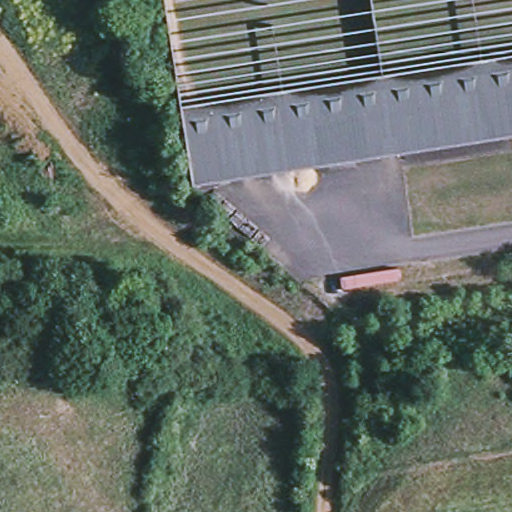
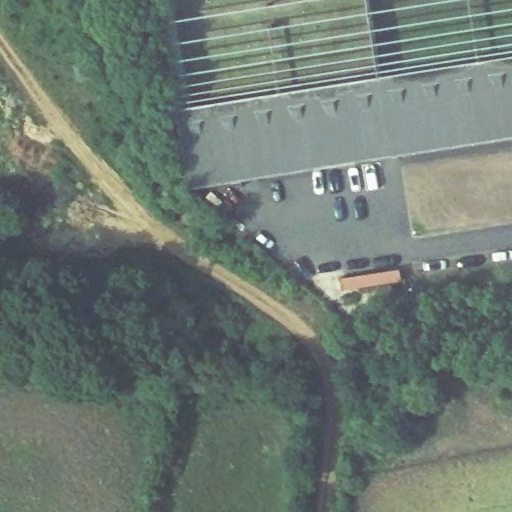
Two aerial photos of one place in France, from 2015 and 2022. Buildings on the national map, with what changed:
unchanged [(384,74),(512,54),(512,135),(191,184),(179,104),(384,74)]

